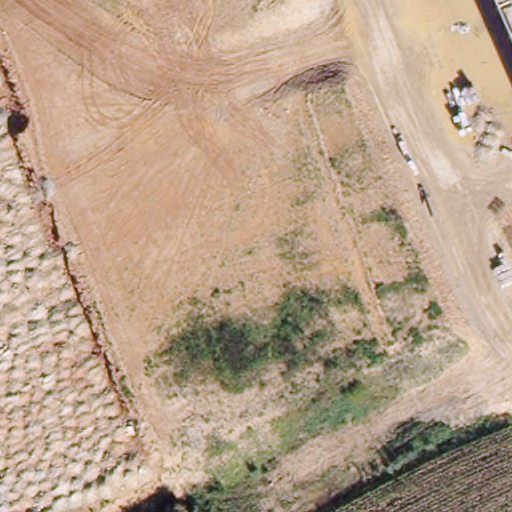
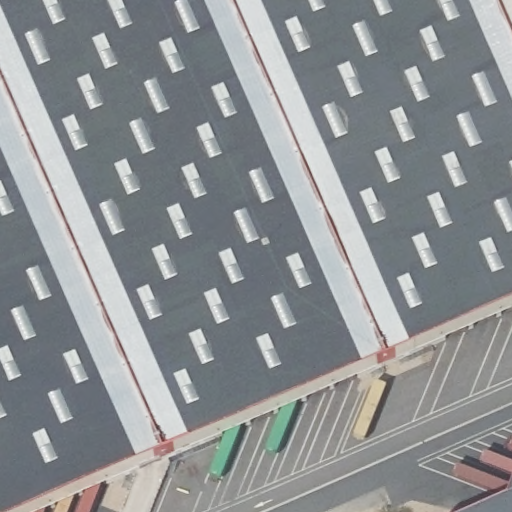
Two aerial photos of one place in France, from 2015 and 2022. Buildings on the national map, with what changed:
new [(43,512),(0,512),(0,0),(494,0),(512,41),(512,308),(43,512)]
unchanged [(494,0),(512,0),(512,41),(494,0)]
new [(492,512),(512,503),(512,512),(492,512)]

